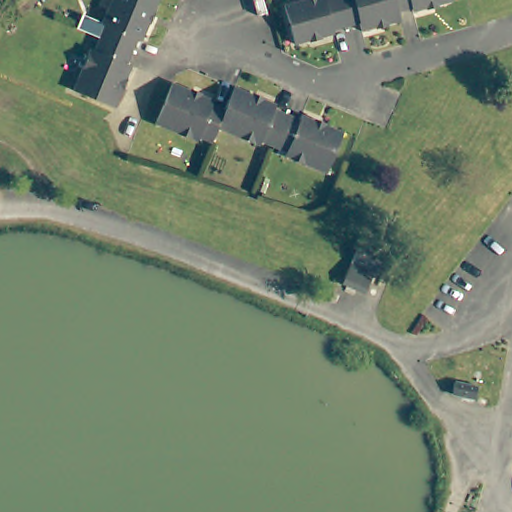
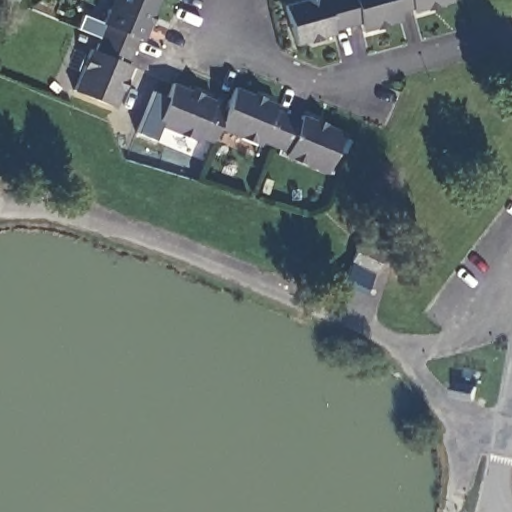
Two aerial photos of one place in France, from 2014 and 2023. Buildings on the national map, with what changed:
unchanged [(158,1),(142,40),(137,38),(132,51),(126,64),(131,66),(114,107),(74,90),(90,49),(94,50),(100,38),(105,25),(101,23),(108,7),(112,8),(116,0),(158,0),(158,1)]
unchanged [(414,11),(413,8),(398,11),(401,20),(362,31),(359,22),(346,26),(333,29),(334,33),(295,44),(284,5),(305,0),(452,0),(452,1),(414,11)]
unchanged [(214,100),(212,104),(225,110),(235,87),(276,104),(274,109),(287,114),(300,120),(302,115),(343,132),(326,173),(285,156),(287,151),(274,146),(261,141),(259,145),(218,128),(212,142),(199,136),(197,141),(156,123),(173,83),(214,100)]
unchanged [(383,254),(376,270),(352,260),(359,243),(383,254)]
unchanged [(374,275),(367,288),(344,278),(350,264),(374,275)]
unchanged [(478,386),(475,398),(453,394),(455,382),(478,386)]

